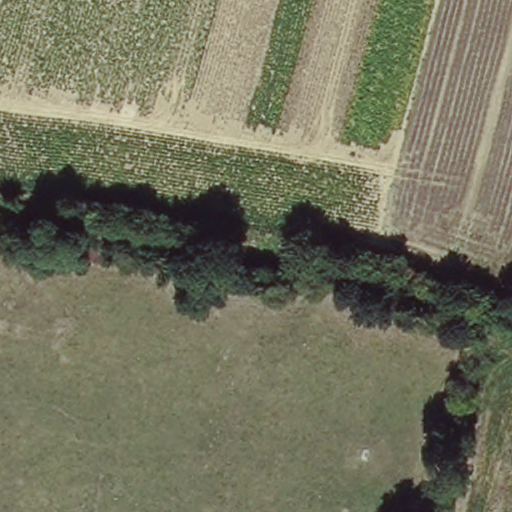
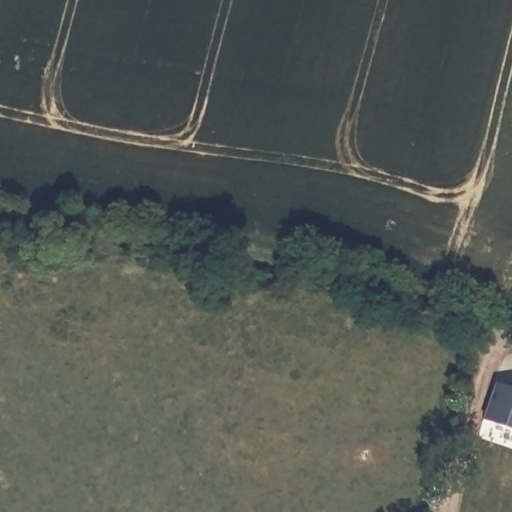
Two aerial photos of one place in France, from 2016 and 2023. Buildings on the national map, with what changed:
new [(512,428),(480,419),(492,381),(512,387),(512,428)]

